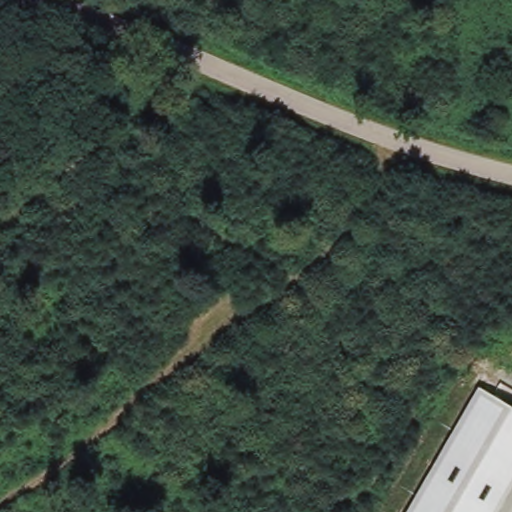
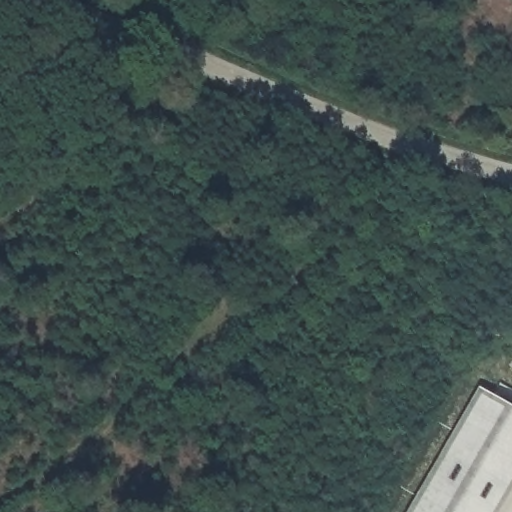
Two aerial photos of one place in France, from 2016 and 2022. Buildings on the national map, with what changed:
unchanged [(512,488),(498,512),(408,512),(479,387),(512,406),(512,488)]

